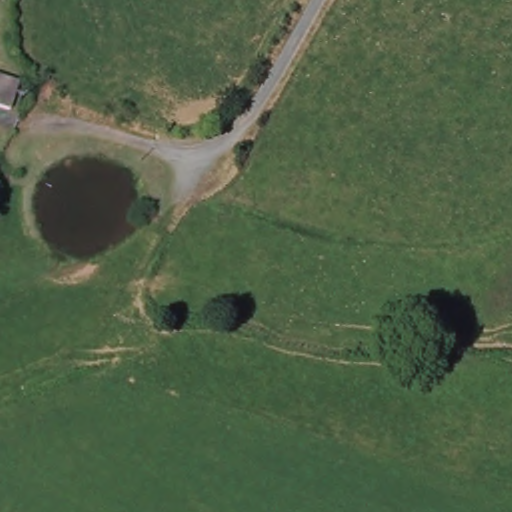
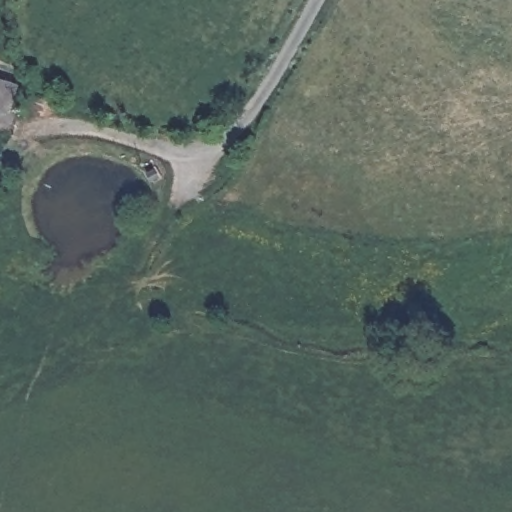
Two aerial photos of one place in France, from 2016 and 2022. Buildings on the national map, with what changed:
unchanged [(11,106),(0,102),(0,72),(20,79),(11,106)]

